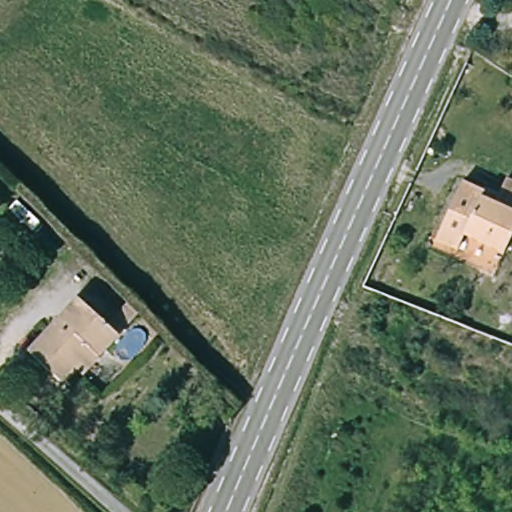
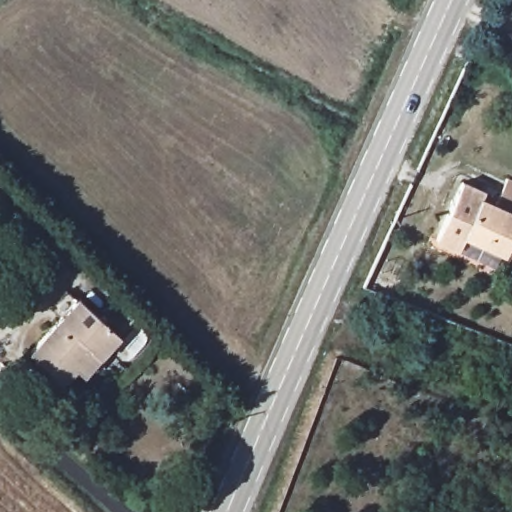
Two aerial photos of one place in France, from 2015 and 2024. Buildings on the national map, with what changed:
unchanged [(512,232),(502,255),(463,238),(456,254),(435,245),(456,196),(458,196),(461,189),(482,196),(479,204),(491,209),(504,186),(512,189),(512,232)]
unchanged [(94,355),(85,346),(55,376),(27,347),(78,297),(116,336),(94,355)]

